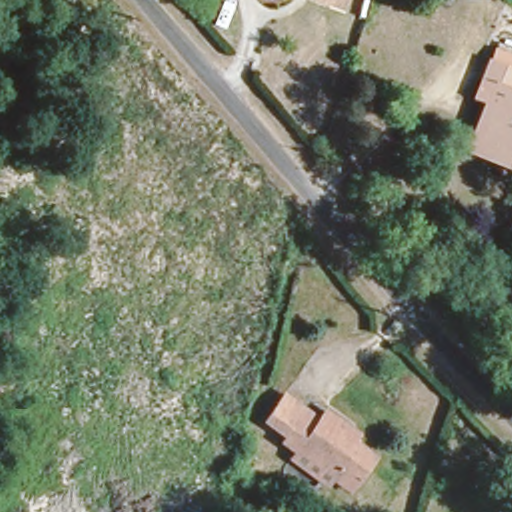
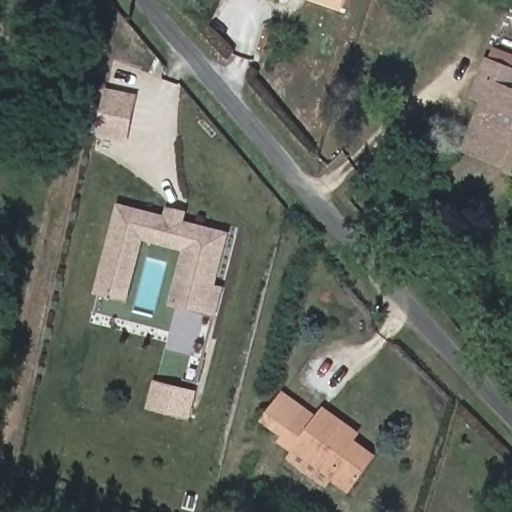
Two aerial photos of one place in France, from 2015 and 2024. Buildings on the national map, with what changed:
unchanged [(341,9),(315,0),(344,0),(341,9)]
unchanged [(464,133),(478,95),(471,92),(484,57),(510,67),(512,68),(512,166),(498,161),(459,147),(464,133)]
new [(105,89),(136,95),(126,144),(96,137),(105,89)]
new [(119,205),(164,215),(166,207),(186,211),(185,222),(228,232),(216,285),(225,287),(217,317),(169,307),(181,250),(142,241),(127,301),(94,294),(119,205)]
new [(190,421),(147,410),(155,380),(197,392),(190,421)]
unchanged [(290,450),(295,441),(283,433),(287,427),(265,411),(283,387),(316,410),(321,403),(359,430),(355,435),(371,446),(348,479),(333,468),(326,476),(290,450)]

